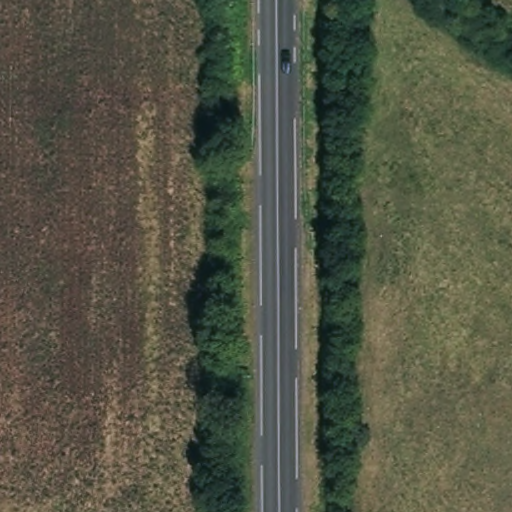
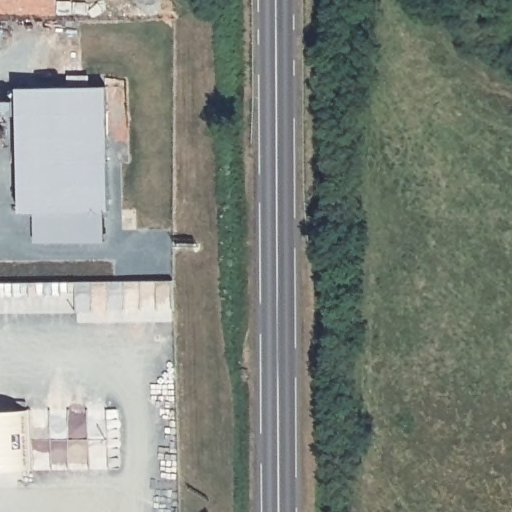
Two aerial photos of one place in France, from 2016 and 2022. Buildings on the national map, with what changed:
new [(107,86),(111,213),(109,242),(35,242),(35,210),(22,211),(19,87),(107,86)]
new [(29,409),(31,470),(0,470),(0,410),(29,409)]

